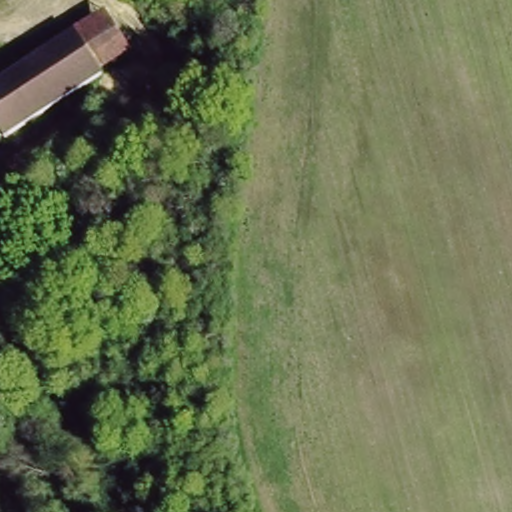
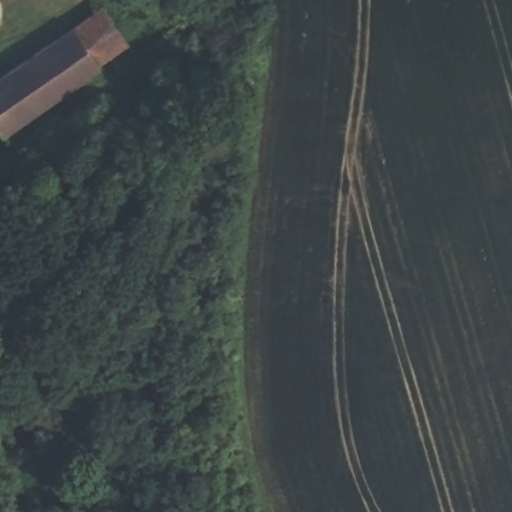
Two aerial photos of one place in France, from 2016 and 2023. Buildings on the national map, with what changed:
unchanged [(68,29),(104,7),(129,45),(94,67),(68,29)]
unchanged [(68,29),(94,67),(0,127),(0,72),(68,29)]

